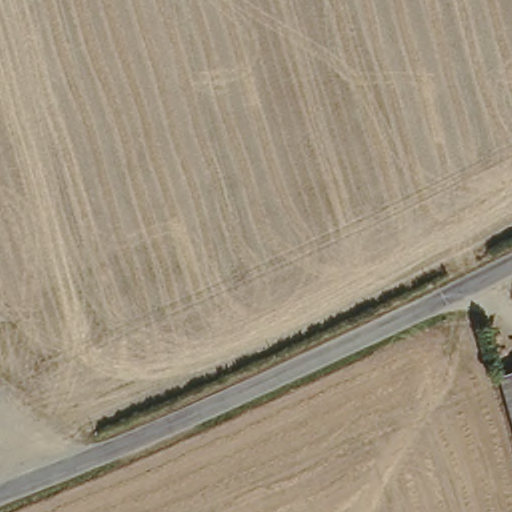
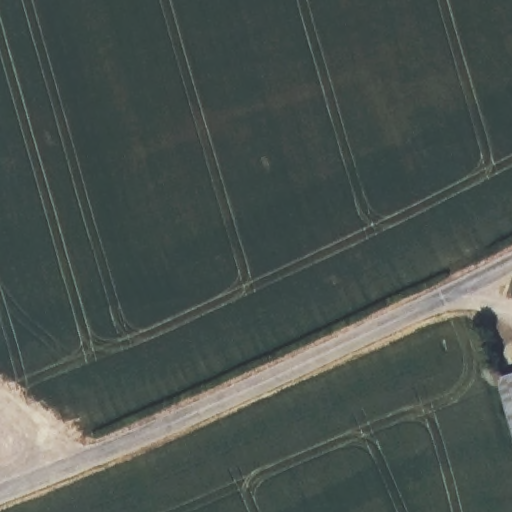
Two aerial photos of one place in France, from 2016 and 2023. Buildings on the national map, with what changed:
unchanged [(512,379),(512,401),(506,380),(512,379)]

